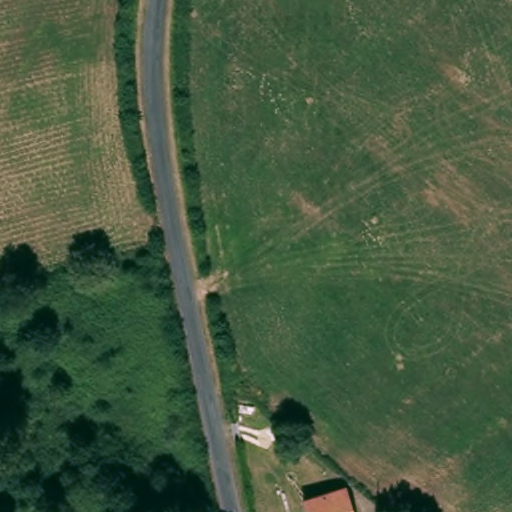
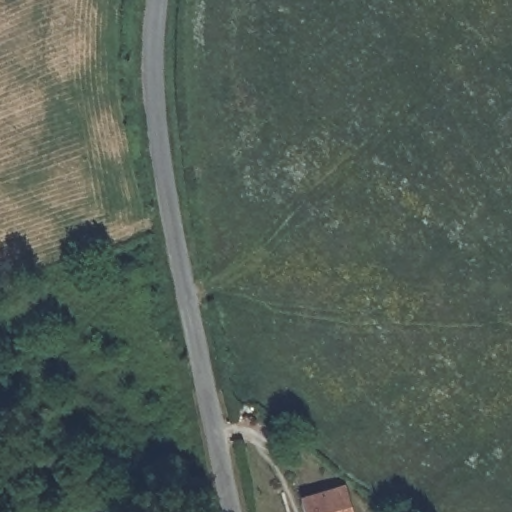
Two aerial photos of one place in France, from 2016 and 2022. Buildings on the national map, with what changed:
unchanged [(346,512),(308,512),(302,494),(337,485),(346,512)]

